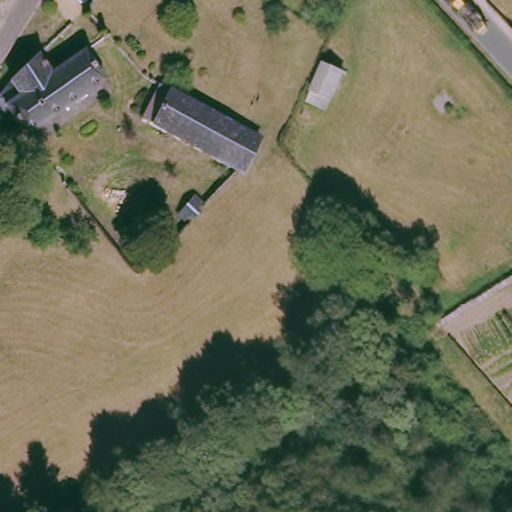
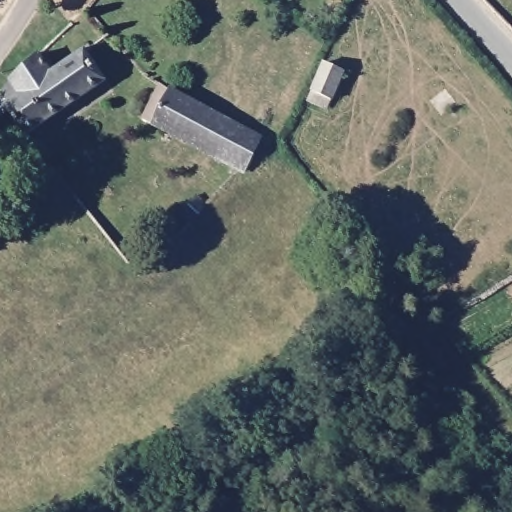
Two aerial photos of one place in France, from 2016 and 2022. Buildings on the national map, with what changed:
unchanged [(25,126),(5,99),(0,102),(0,79),(13,64),(35,43),(40,48),(44,45),(55,61),(84,42),(105,72),(25,126)]
unchanged [(337,65),(324,95),(307,87),(322,58),(337,65)]
unchanged [(260,130),(242,166),(238,164),(142,118),(160,81),(260,130)]
unchanged [(200,204),(182,223),(172,214),(189,195),(200,204)]

